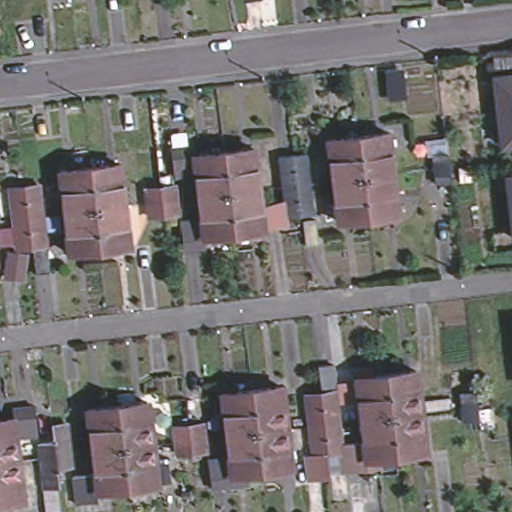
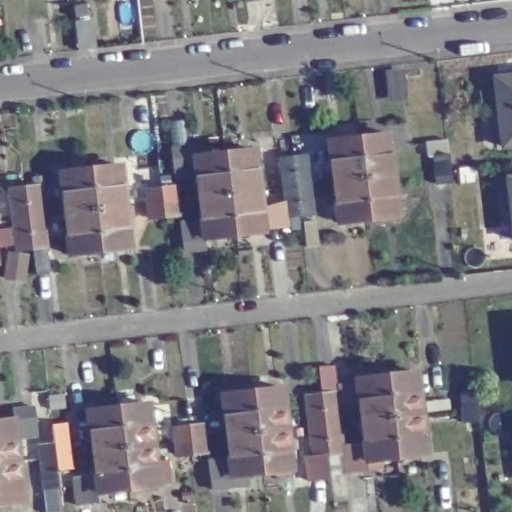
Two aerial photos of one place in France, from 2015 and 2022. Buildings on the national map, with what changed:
unchanged [(494,80),(512,78),(512,147),(500,149),(494,80)]
unchanged [(324,145),(384,138),(388,177),(393,220),(333,226),(328,185),(324,145)]
unchanged [(180,254),(177,222),(200,220),(197,196),(192,156),(250,149),(255,189),(260,230),(202,237),(204,252),(180,254)]
unchanged [(437,182),(435,167),(434,154),(450,152),(451,166),(452,171),(453,181),(437,182)]
unchanged [(130,247),(72,253),(67,212),(62,172),(121,166),(125,205),(130,247)]
unchanged [(307,197),(282,201),(280,186),(279,172),(302,170),(305,182),(307,197)]
unchanged [(505,180),(512,179),(512,237),(505,180)]
unchanged [(15,252),(6,189),(40,185),(48,249),(50,275),(35,277),(32,251),(15,252)]
unchanged [(171,216),(147,219),(145,202),(143,190),(168,186),(170,199),(171,216)]
unchanged [(367,470),(346,473),(340,475),(330,476),(330,479),(307,481),(303,455),(309,455),(307,434),(314,433),(313,426),(312,411),(310,396),(325,394),(320,368),(333,366),(337,392),(333,392),(335,407),(337,422),(338,431),(339,438),(342,445),(364,443),(361,420),(421,413),(425,452),(379,458),(380,468),(367,470)]
unchanged [(361,420),(357,378),(417,371),(421,413),(361,420)]
unchanged [(223,394),(282,387),(287,428),(228,435),(223,394)]
unchanged [(462,392),(477,391),(480,406),(480,412),(481,420),(464,421),(463,408),(462,392)]
unchanged [(88,456),(83,416),(143,409),(147,449),(88,456)]
unchanged [(7,416),(28,415),(31,441),(10,443),(13,465),(0,466),(0,426),(8,425),(7,416)]
unchanged [(177,457),(176,441),(175,427),(200,425),(202,438),(203,455),(177,457)]
unchanged [(213,489),(211,461),(231,457),(228,435),(287,428),(292,468),(233,475),(235,486),(213,489)]
unchanged [(39,479),(37,462),(36,449),(60,446),(62,459),(63,477),(39,479)]
unchanged [(73,509),(70,484),(92,481),(88,456),(147,449),(152,490),(93,496),(95,506),(73,509)]
unchanged [(18,505),(0,507),(0,466),(13,465),(18,505)]

